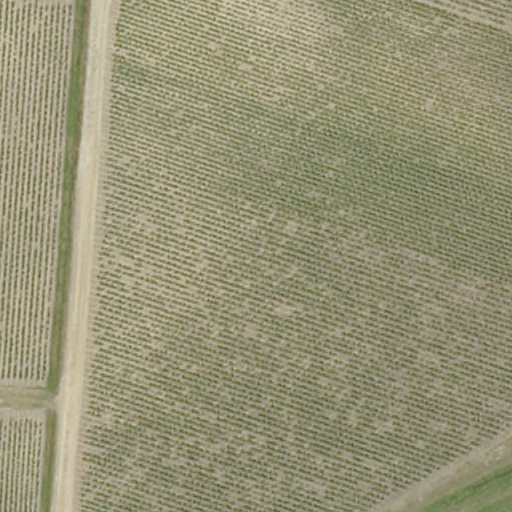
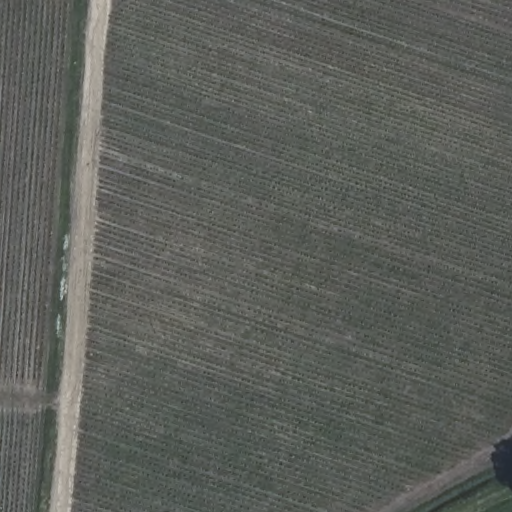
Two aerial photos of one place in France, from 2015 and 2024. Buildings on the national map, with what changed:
[]

